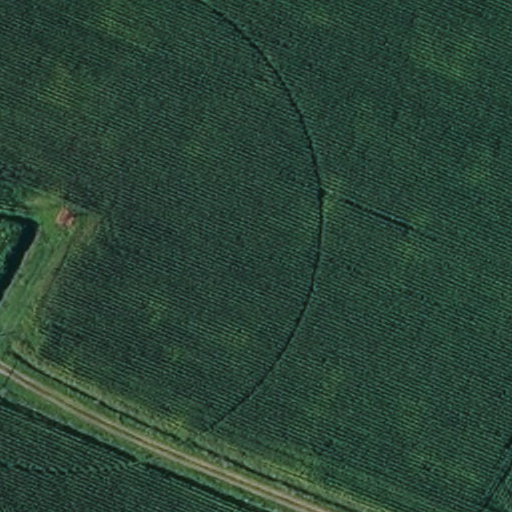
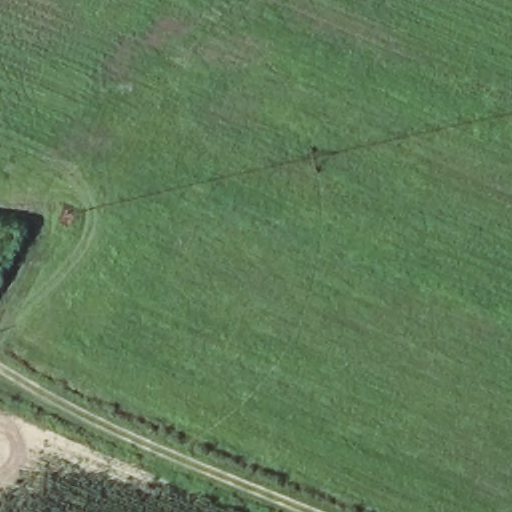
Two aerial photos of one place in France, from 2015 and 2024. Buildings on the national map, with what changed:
[]

